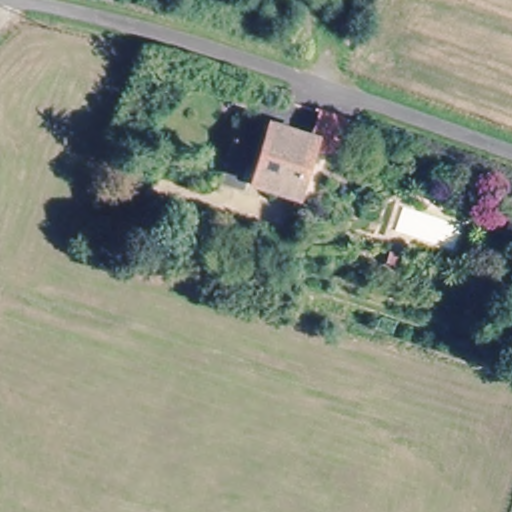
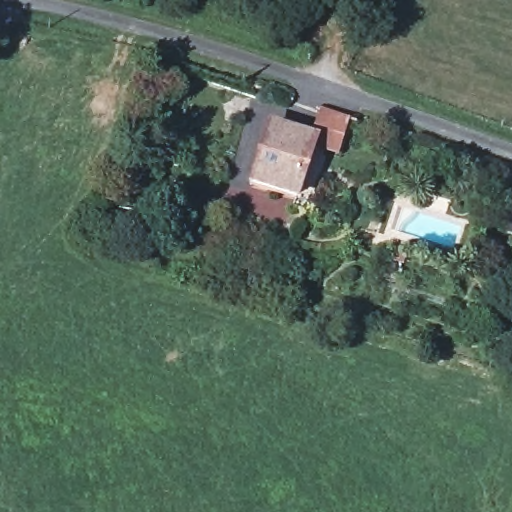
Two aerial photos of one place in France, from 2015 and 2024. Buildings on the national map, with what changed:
unchanged [(271,121),(310,136),(298,175),(305,180),(300,195),(250,178),(271,121)]

